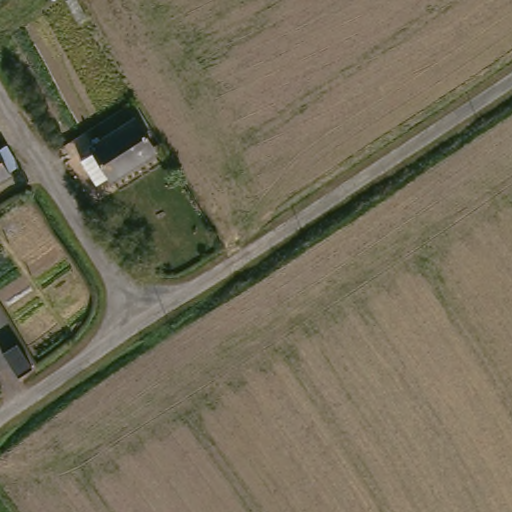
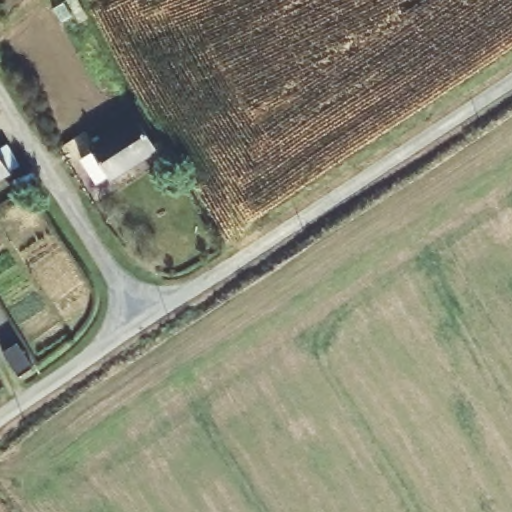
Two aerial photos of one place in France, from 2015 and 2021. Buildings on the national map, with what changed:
unchanged [(82,159),(96,150),(92,144),(135,118),(155,149),(112,177),(110,175),(97,183),(82,159)]
unchanged [(10,172),(0,178),(0,156),(10,172)]

